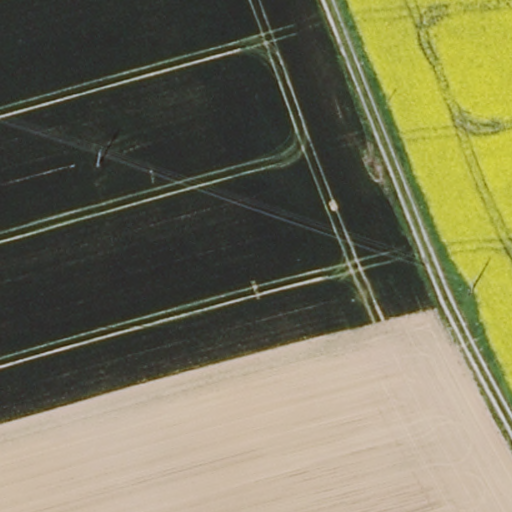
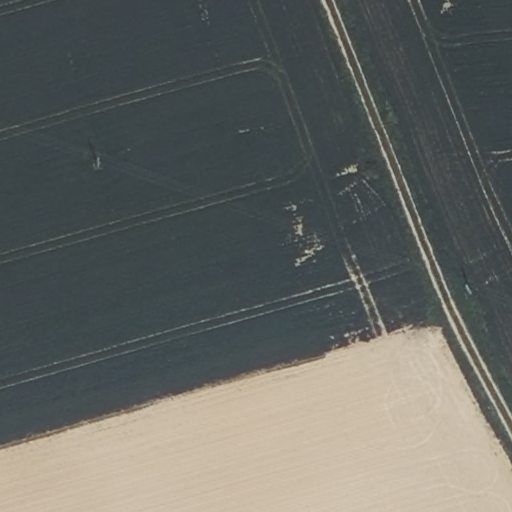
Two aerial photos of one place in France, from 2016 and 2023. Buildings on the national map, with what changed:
[]

